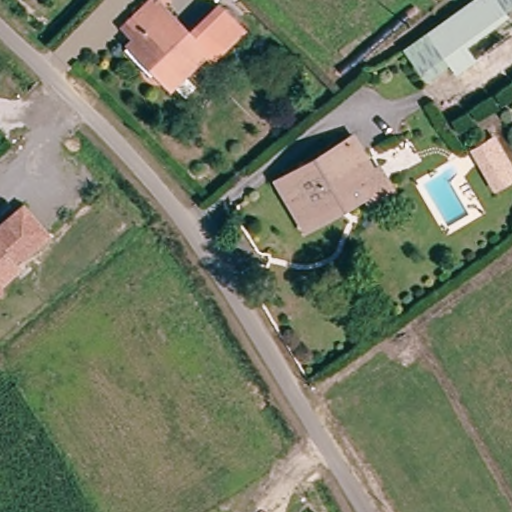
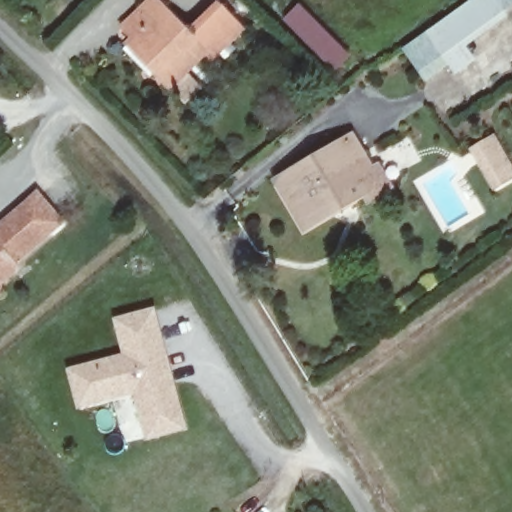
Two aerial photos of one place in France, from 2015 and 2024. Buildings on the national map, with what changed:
unchanged [(218,7),(238,30),(206,59),(200,52),(186,64),(164,84),(150,69),(150,68),(149,70),(145,73),(119,46),(130,36),(127,32),(120,24),(134,10),(145,0),(154,0),(186,36),(218,7)]
unchanged [(512,0),(512,4),(502,12),(507,17),(464,49),(476,62),(457,77),(448,66),(425,81),(400,45),(465,0),(512,0)]
new [(300,3),(351,56),(336,71),(283,19),(300,3)]
unchanged [(366,169),(377,164),(390,187),(370,197),(366,189),(344,202),(340,195),(302,216),(292,195),(283,199),(273,178),(346,136),(366,169)]
unchanged [(501,140),(512,158),(512,183),(505,187),(484,150),(490,146),(501,140)]
unchanged [(0,232),(27,207),(52,236),(20,263),(23,268),(5,283),(5,293),(0,293),(0,232)]
new [(115,322),(119,321),(151,312),(162,359),(170,385),(180,430),(146,437),(134,387),(75,402),(69,373),(125,359),(115,322)]

